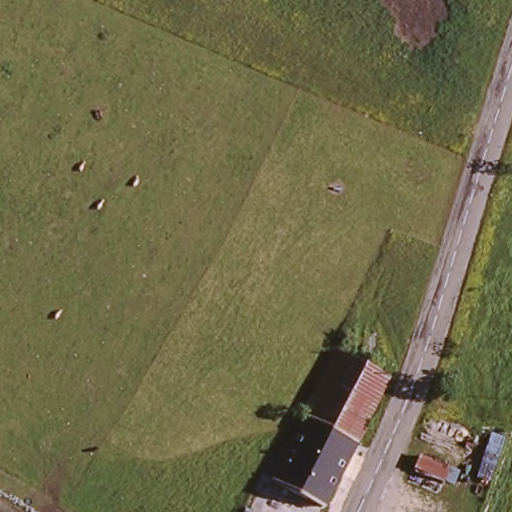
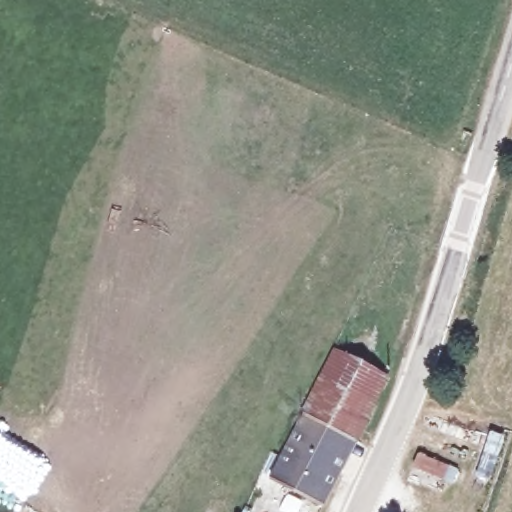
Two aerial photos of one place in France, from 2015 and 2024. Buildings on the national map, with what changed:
unchanged [(384,374),(356,436),(312,416),(342,352),(384,374)]
unchanged [(356,436),(324,505),(281,485),(292,460),(312,416),(356,436)]
unchanged [(455,465),(451,478),(422,468),(427,451),(455,465)]

